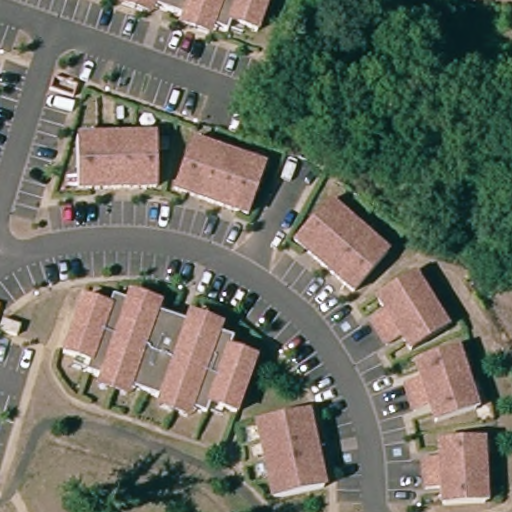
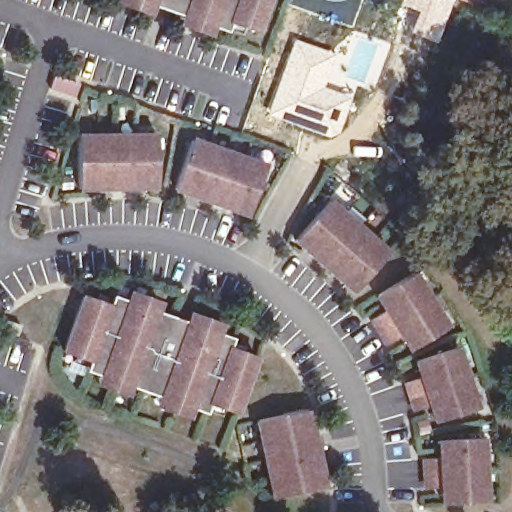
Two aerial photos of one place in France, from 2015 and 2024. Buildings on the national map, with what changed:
unchanged [(190,23),(193,16),(160,4),(157,12),(129,2),(130,0),(277,0),(266,30),(240,21),(236,31),(221,25),(218,33),(190,23)]
new [(401,0),(454,0),(436,43),(408,32),(416,12),(399,5),(401,0)]
new [(293,37),(339,54),(326,84),(352,93),(345,113),(335,133),(323,134),(267,112),(293,37)]
unchanged [(164,132),(164,183),(85,184),(84,133),(164,132)]
unchanged [(273,162),(256,211),(181,184),(198,136),(273,162)]
unchanged [(336,196),(396,248),(363,287),(303,235),(336,196)]
unchanged [(419,271),(454,325),(418,349),(409,334),(395,343),(379,318),(393,309),(383,294),(419,271)]
unchanged [(169,403),(172,395),(138,383),(135,391),(108,381),(110,374),(95,368),(98,358),(72,349),(91,294),(117,303),(121,292),(137,298),(139,290),(167,300),(165,308),(198,319),(201,312),(229,321),(226,329),(242,335),(238,345),(264,354),(245,409),(218,400),(215,410),(200,405),(197,413),(169,403)]
unchanged [(12,316),(29,322),(25,333),(8,327),(12,316)]
unchanged [(459,350),(480,411),(440,425),(434,409),(419,414),(409,386),(425,380),(419,364),(459,350)]
unchanged [(316,409),(333,486),(283,497),(266,420),(316,409)]
unchanged [(486,436),(490,500),(448,503),(447,486),(430,487),(428,457),(445,456),(444,439),(486,436)]

